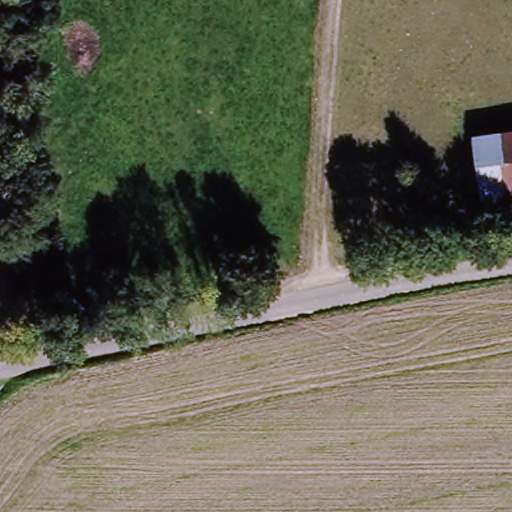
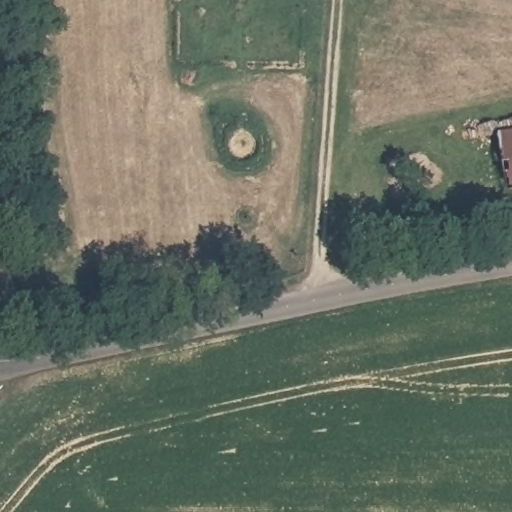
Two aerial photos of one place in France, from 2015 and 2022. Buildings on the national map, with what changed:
unchanged [(480,147),(512,142),(512,202),(487,206),(480,147)]

